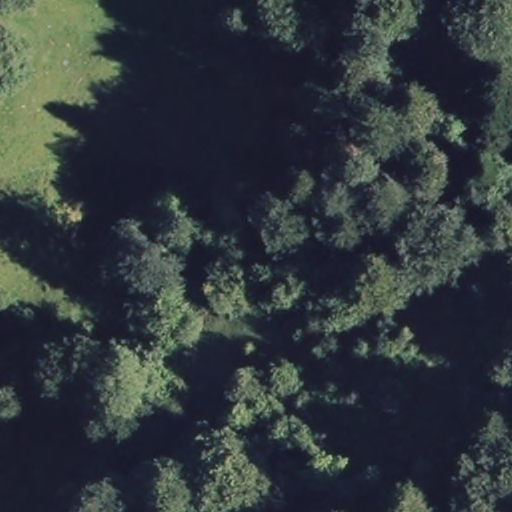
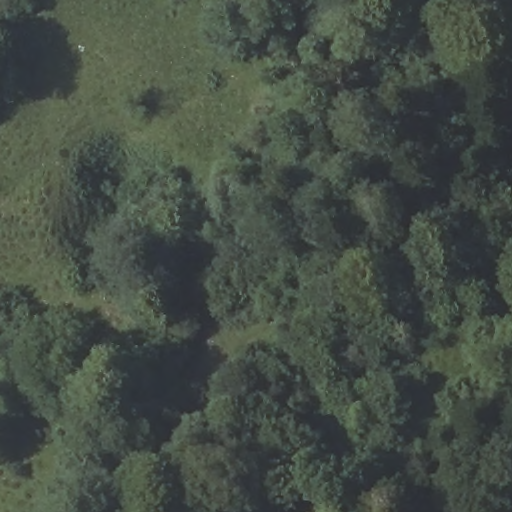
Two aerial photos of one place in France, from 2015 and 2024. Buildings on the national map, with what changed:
unchanged [(379,395),(388,412),(375,417),(366,399),(379,395)]

